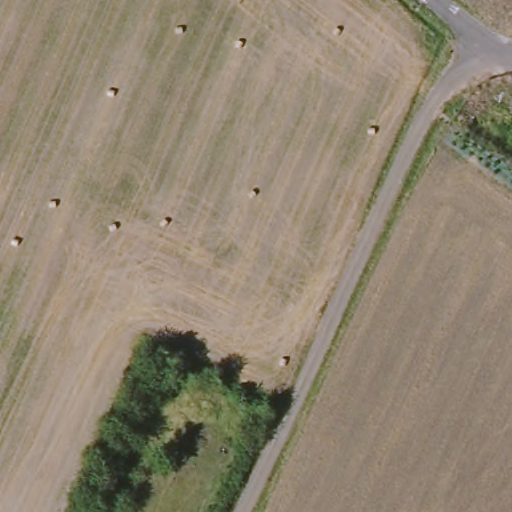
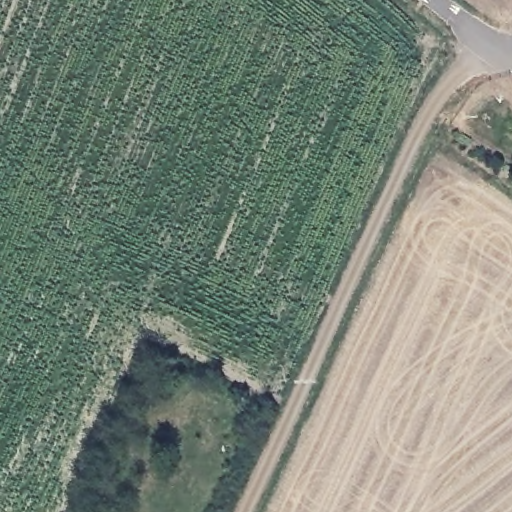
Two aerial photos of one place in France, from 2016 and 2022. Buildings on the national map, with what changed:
[]

